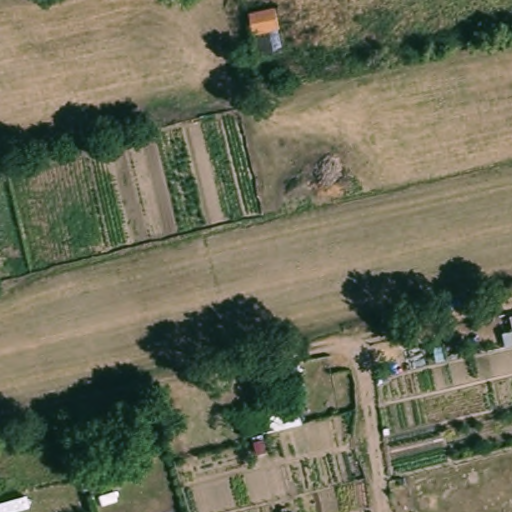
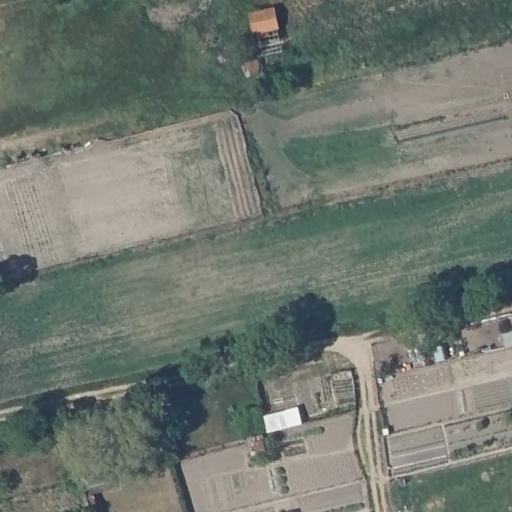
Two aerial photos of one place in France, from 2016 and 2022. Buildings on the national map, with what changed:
unchanged [(241,11),(273,1),(280,29),(251,35),(241,11)]
unchanged [(275,406),(312,395),(321,416),(280,426),(275,406)]

